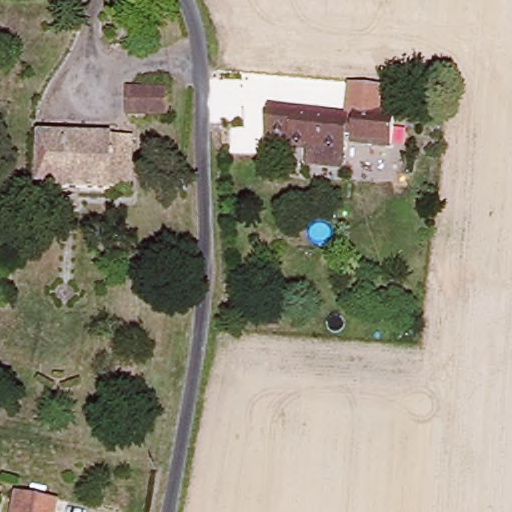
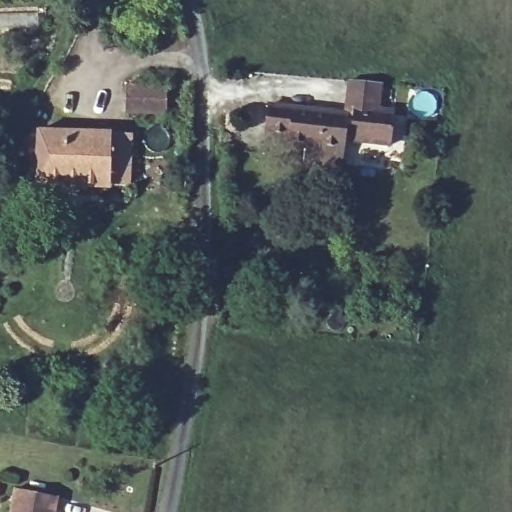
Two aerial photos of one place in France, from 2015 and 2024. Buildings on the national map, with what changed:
unchanged [(338,170),(302,166),(304,145),(287,144),(287,137),(266,136),(268,106),(345,114),(347,115),(351,85),(368,87),(366,109),(396,111),(392,146),(367,145),(341,142),(338,170)]
unchanged [(162,121),(119,119),(121,90),(164,94),(162,121)]
unchanged [(125,190),(101,187),(101,190),(29,184),(34,131),(129,140),(125,190)]
unchanged [(47,512),(5,512),(7,492),(49,499),(47,512)]

